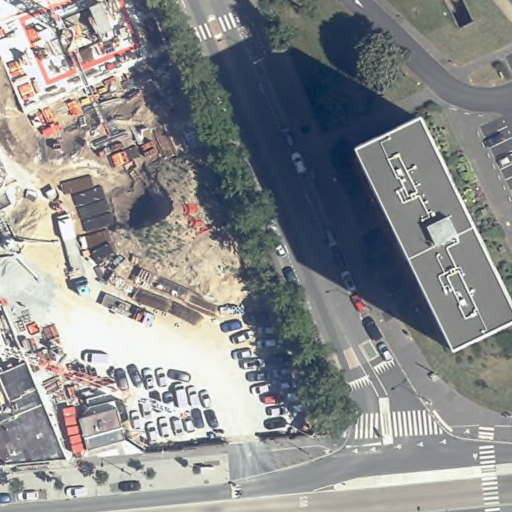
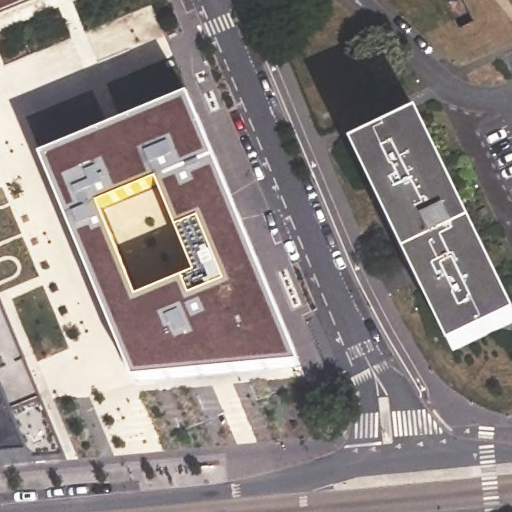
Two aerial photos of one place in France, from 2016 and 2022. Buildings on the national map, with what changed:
unchanged [(0,19),(0,0),(43,0),(0,19)]
new [(301,367),(135,384),(41,157),(191,97),(301,367)]
unchanged [(512,324),(457,350),(360,150),(425,119),(512,301),(512,324)]
unchanged [(3,304),(66,459),(37,462),(0,377),(0,305),(3,304)]
unchanged [(37,462),(0,465),(0,377),(37,462)]

